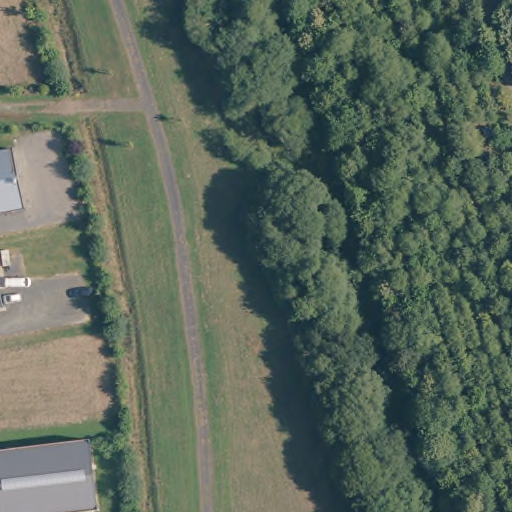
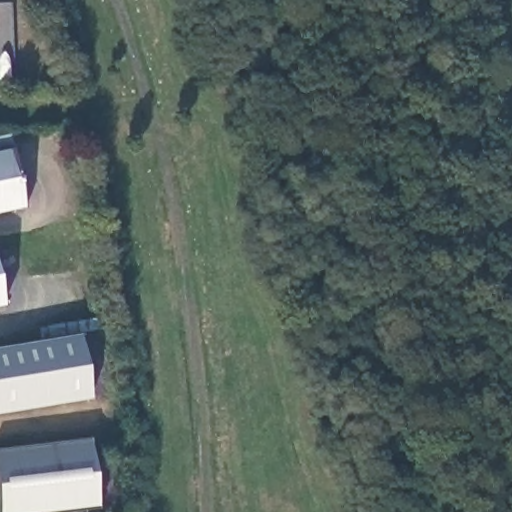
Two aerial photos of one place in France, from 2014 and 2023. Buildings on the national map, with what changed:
unchanged [(15,148),(26,208),(0,213),(0,152),(15,148)]
unchanged [(6,307),(0,309),(0,275),(6,307)]
new [(80,336),(89,399),(0,414),(0,349),(80,336)]
unchanged [(0,496),(0,449),(90,437),(100,507),(54,512),(2,512),(0,496)]

